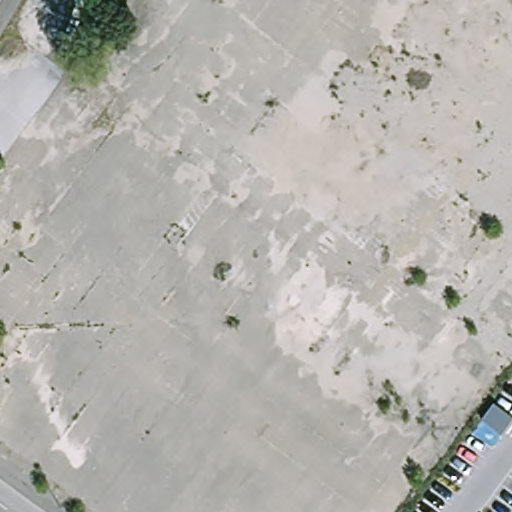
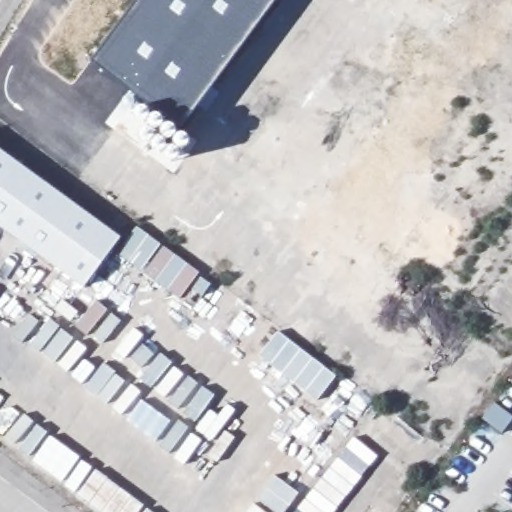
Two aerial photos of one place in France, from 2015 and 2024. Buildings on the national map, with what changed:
new [(182,127),(92,60),(137,0),(275,0),(182,127)]
new [(120,237),(83,287),(0,227),(0,149),(120,237)]

